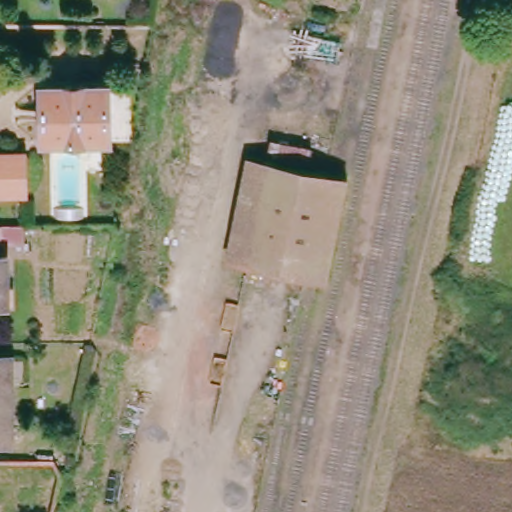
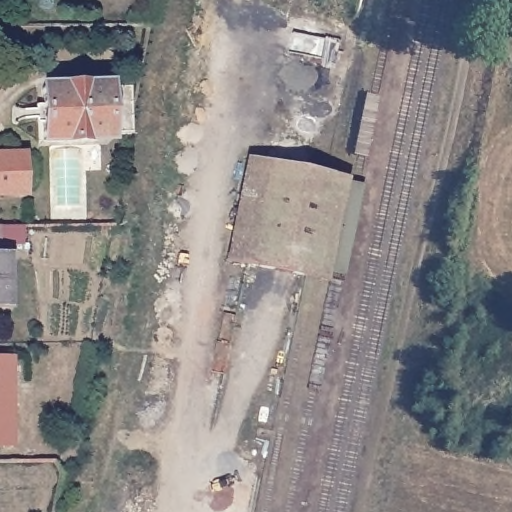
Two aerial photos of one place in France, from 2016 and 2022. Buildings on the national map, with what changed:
unchanged [(31,142),(29,88),(94,86),(95,92),(115,91),(116,138),(31,142)]
unchanged [(0,194),(0,155),(18,155),(19,194),(0,194)]
unchanged [(312,279),(233,265),(252,162),(331,178),(312,279)]
unchanged [(17,246),(2,253),(2,310),(0,310),(0,226),(20,226),(17,246)]

